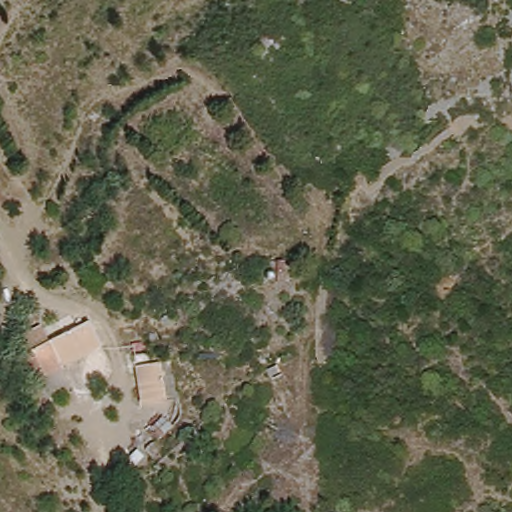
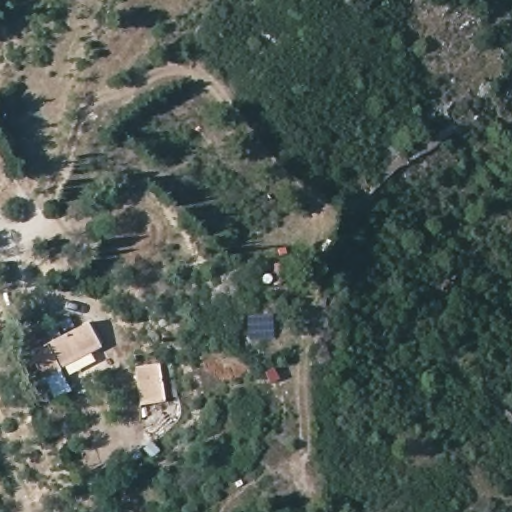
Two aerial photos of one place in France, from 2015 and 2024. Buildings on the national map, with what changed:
unchanged [(101,347),(62,369),(71,386),(48,400),(18,339),(40,327),(47,340),(88,320),(101,347)]
unchanged [(134,366),(160,362),(165,401),(140,402),(134,366)]

